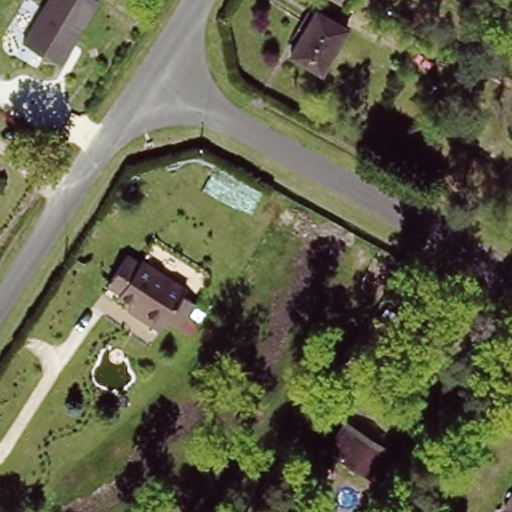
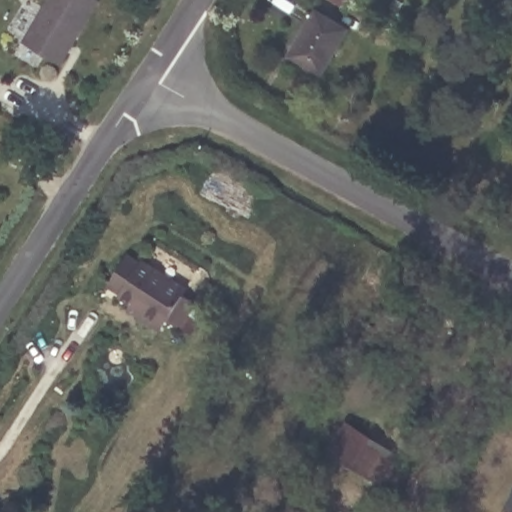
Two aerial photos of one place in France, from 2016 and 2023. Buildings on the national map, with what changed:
unchanged [(92,0),(58,59),(20,39),(44,0),(92,0)]
unchanged [(342,30),(319,75),(288,57),(312,15),(342,30)]
unchanged [(173,336),(157,326),(151,336),(132,325),(138,316),(115,300),(117,297),(103,289),(122,260),(133,268),(137,262),(143,266),(142,268),(178,291),(176,296),(190,305),(173,336)]
unchanged [(377,483),(363,474),(327,453),(343,425),(355,432),(355,439),(377,452),(390,460),(377,483)]
unchanged [(512,502),(512,512),(507,512),(507,511),(512,502)]

